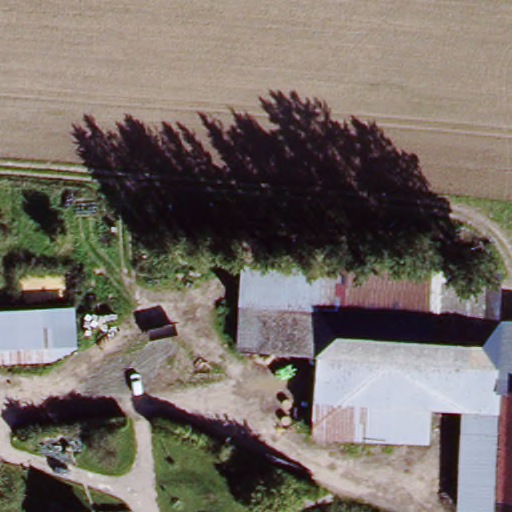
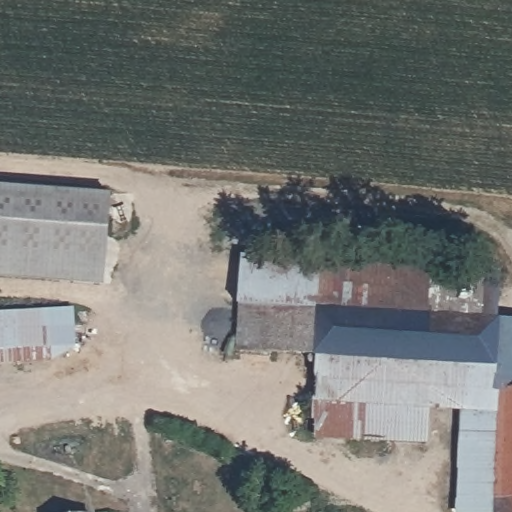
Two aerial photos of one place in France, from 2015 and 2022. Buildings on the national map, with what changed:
new [(106,195),(99,285),(0,276),(0,186),(106,195)]
unchanged [(501,317),(512,319),(512,512),(451,512),(452,413),(427,412),(427,444),(302,438),(306,351),(232,347),(235,253),(503,271),(501,317)]
unchanged [(73,308),(76,343),(51,358),(0,362),(0,312),(73,308)]

